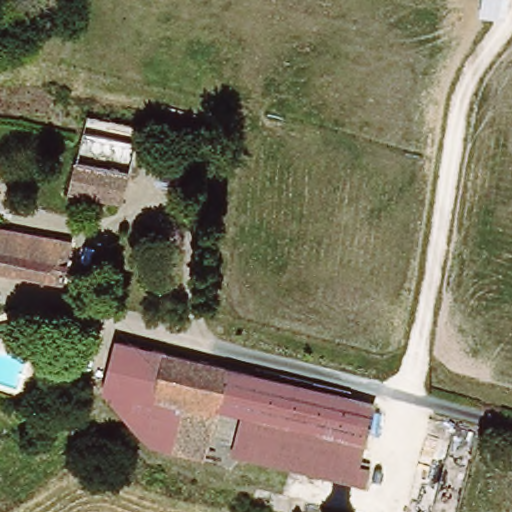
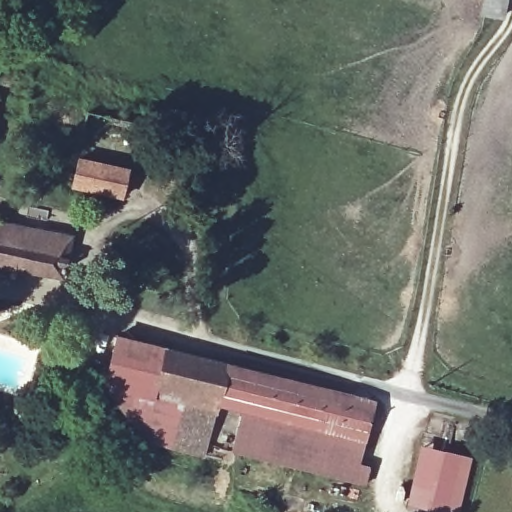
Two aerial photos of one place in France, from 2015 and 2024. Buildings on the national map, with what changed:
unchanged [(120,197),(69,185),(85,115),(137,128),(120,197)]
unchanged [(194,157),(183,199),(149,189),(159,149),(194,157)]
unchanged [(67,237),(60,280),(0,268),(0,222),(67,237)]
unchanged [(232,452),(242,408),(187,395),(177,445),(152,442),(102,385),(114,338),(247,372),(251,364),(351,388),(352,397),(375,402),(360,465),(367,467),(362,487),(232,452)]
new [(471,457),(457,512),(433,512),(406,505),(421,446),(471,457)]

